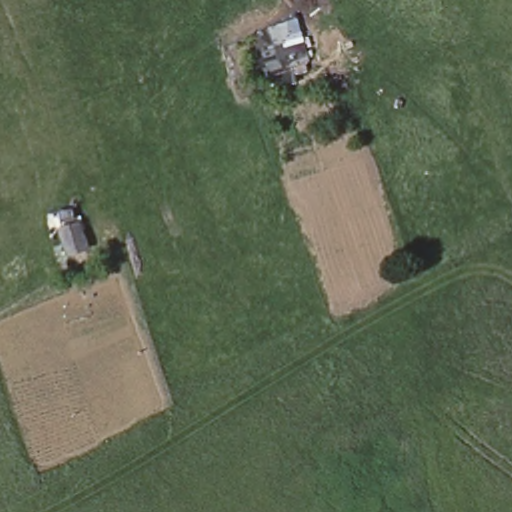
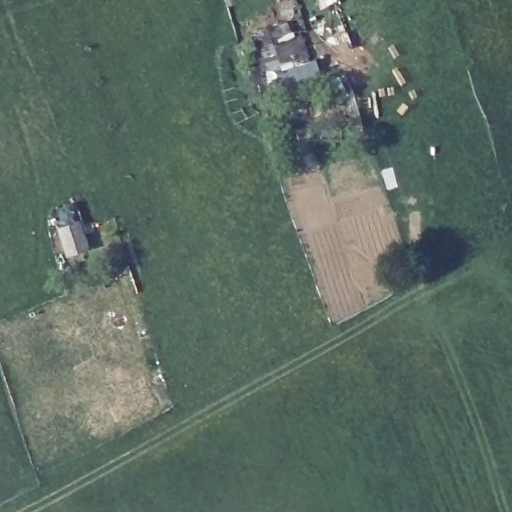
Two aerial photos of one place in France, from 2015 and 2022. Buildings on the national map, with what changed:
unchanged [(256,55),(263,51),(255,30),(279,21),(285,36),(302,33),(312,61),(287,70),(291,79),(268,85),(256,55)]
unchanged [(55,225),(79,219),(87,247),(66,254),(55,225)]

